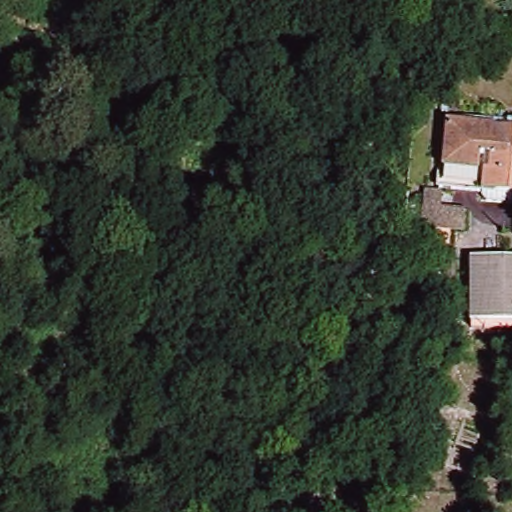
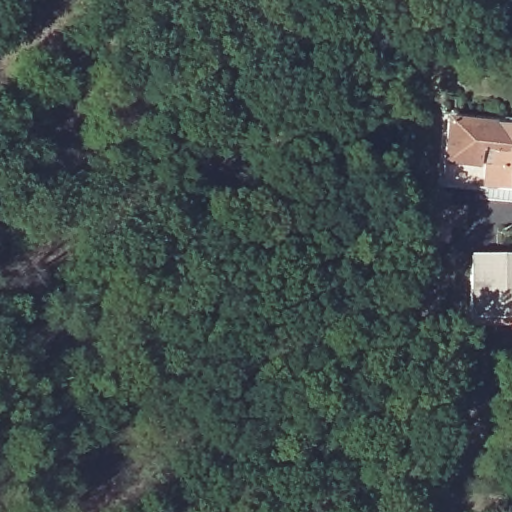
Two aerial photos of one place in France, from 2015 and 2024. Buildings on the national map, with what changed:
unchanged [(475,179),(445,177),(451,110),(512,116),(512,198),(487,196),(475,179)]
unchanged [(462,227),(442,225),(417,223),(421,187),(438,189),(437,201),(446,201),(464,203),(462,227)]
unchanged [(512,317),(463,315),(466,255),(512,258),(512,317)]

